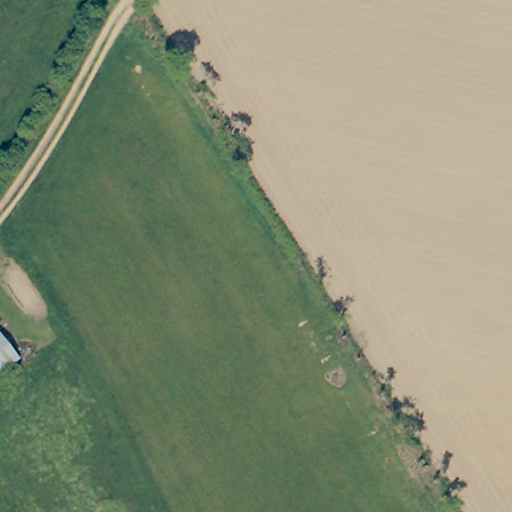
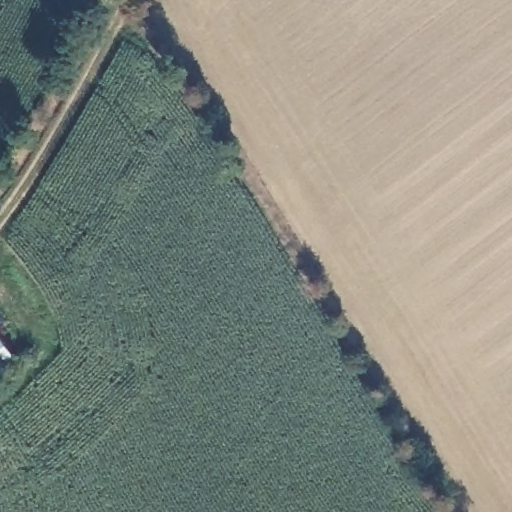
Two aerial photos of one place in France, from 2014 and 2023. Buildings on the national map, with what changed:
unchanged [(0,373),(0,336),(18,359),(0,373)]

